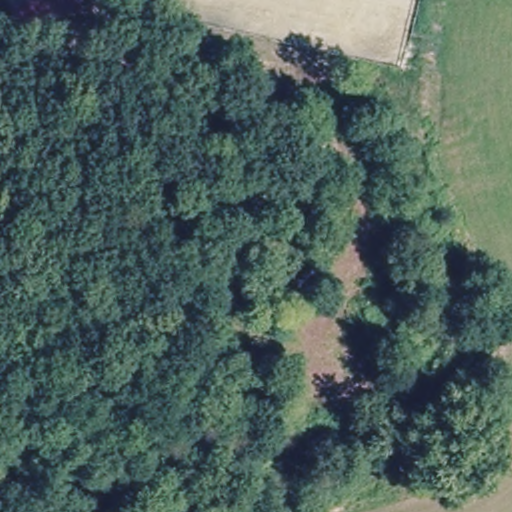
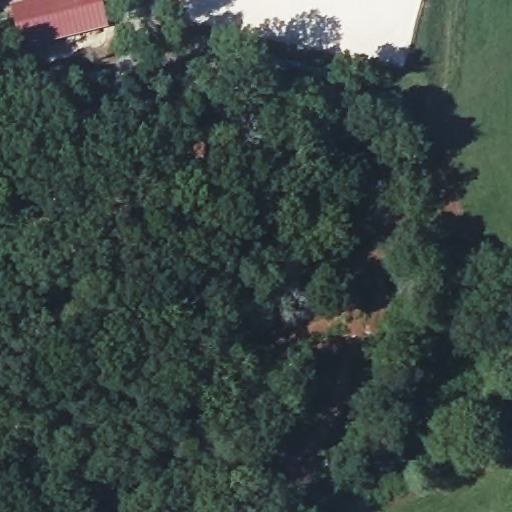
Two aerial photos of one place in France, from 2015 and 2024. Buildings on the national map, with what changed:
new [(101,0),(108,29),(20,50),(8,9),(38,0),(101,0)]

